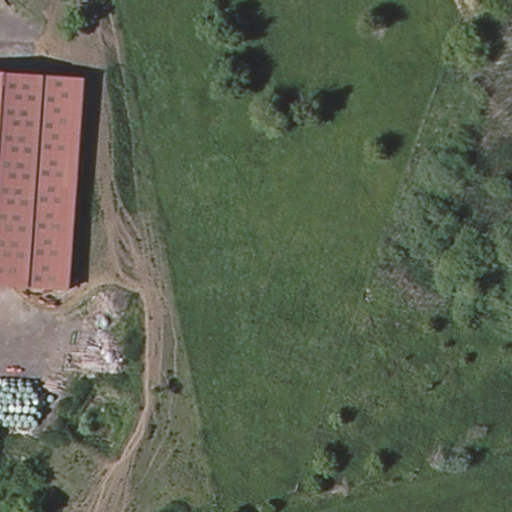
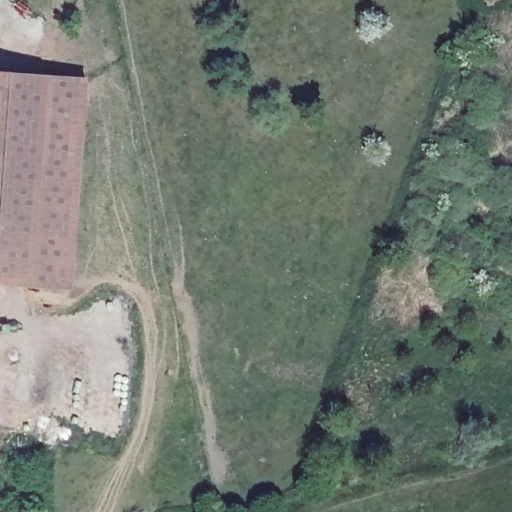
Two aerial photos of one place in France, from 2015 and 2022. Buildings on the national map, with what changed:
unchanged [(46,72),(88,76),(70,291),(29,287),(0,285),(0,70),(46,72)]

